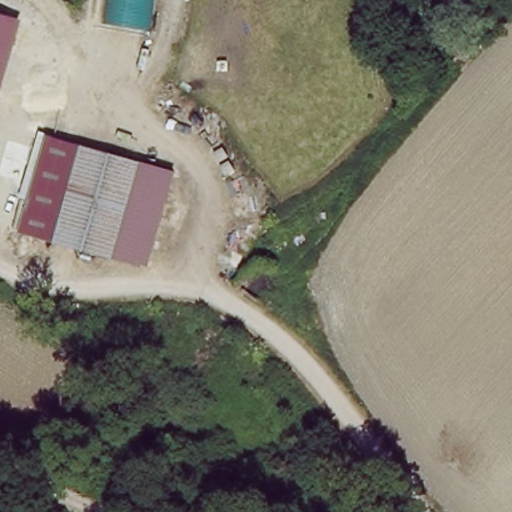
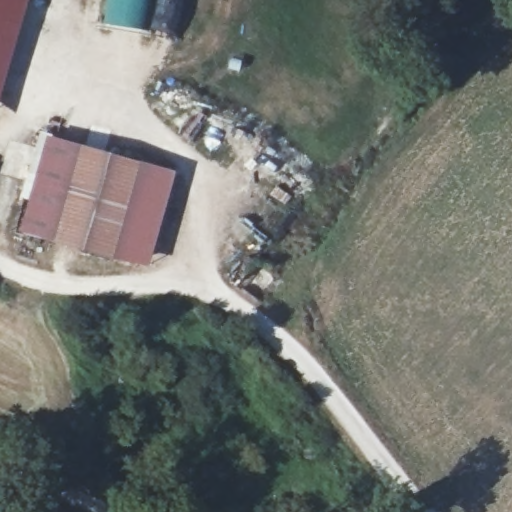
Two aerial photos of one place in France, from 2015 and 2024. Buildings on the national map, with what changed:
unchanged [(154,27),(106,20),(109,0),(158,0),(154,27)]
unchanged [(0,106),(0,14),(25,20),(0,106)]
unchanged [(23,232),(52,135),(177,170),(151,265),(23,232)]

